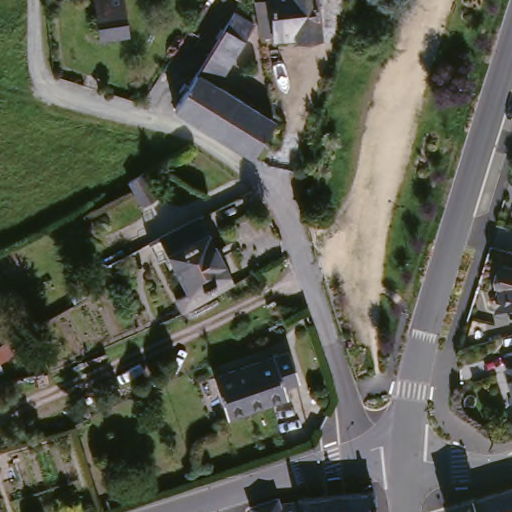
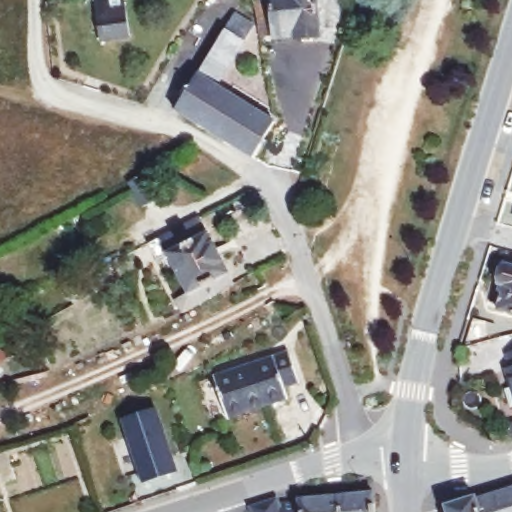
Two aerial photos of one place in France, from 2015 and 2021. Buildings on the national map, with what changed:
unchanged [(104,39),(97,0),(129,0),(134,34),(104,39)]
unchanged [(267,0),(312,0),(315,37),(310,38),(307,42),(297,42),(294,38),(291,39),(289,37),(268,38),(268,35),(256,35),(250,1),(267,0)]
unchanged [(214,86),(195,74),(221,30),(222,30),(232,13),(251,24),(214,86)]
unchanged [(248,158),(199,128),(172,111),(179,99),(186,89),(195,74),(214,86),(222,91),(227,94),(271,122),(248,158)]
unchanged [(140,176),(144,174),(157,199),(142,207),(128,183),(140,176)]
unchanged [(232,285),(187,310),(181,314),(174,300),(187,294),(169,258),(159,263),(149,244),(200,218),(232,285)]
unchanged [(512,269),(512,314),(495,309),(501,284),(495,283),(498,265),(512,269)]
unchanged [(10,354),(0,361),(0,343),(4,341),(10,354)]
unchanged [(281,356),(291,387),(276,392),(279,402),(217,422),(205,381),(281,356)]
unchanged [(506,374),(511,372),(507,358),(512,356),(512,394),(506,374)]
new [(155,408),(176,472),(142,483),(121,419),(155,408)]
unchanged [(472,495),(473,497),(512,485),(512,512),(447,512),(444,504),(472,495)]
unchanged [(247,502),(274,493),(276,497),(295,495),(295,493),(367,486),(370,512),(250,512),(247,502)]

